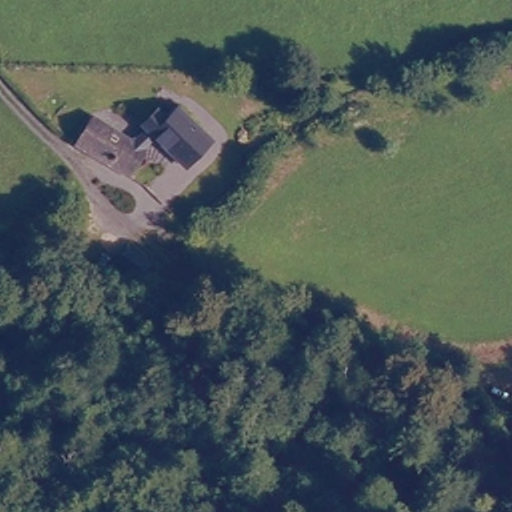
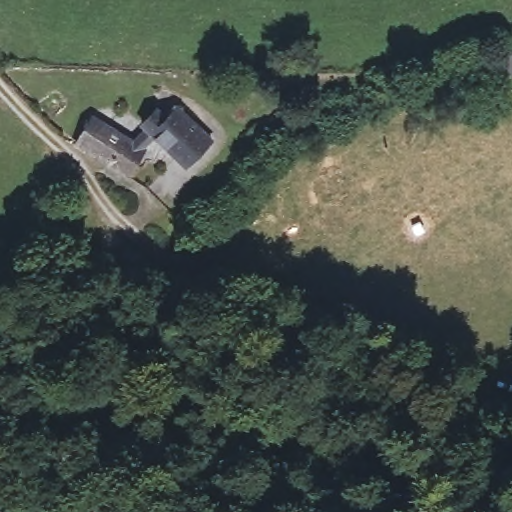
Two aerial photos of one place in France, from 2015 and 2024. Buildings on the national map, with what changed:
unchanged [(197,162),(193,166),(159,135),(147,127),(162,107),(174,116),(182,106),(191,111),(219,137),(197,162)]
unchanged [(100,114),(149,151),(133,172),(83,137),(100,114)]
unchanged [(154,257),(144,272),(119,257),(129,242),(154,257)]

